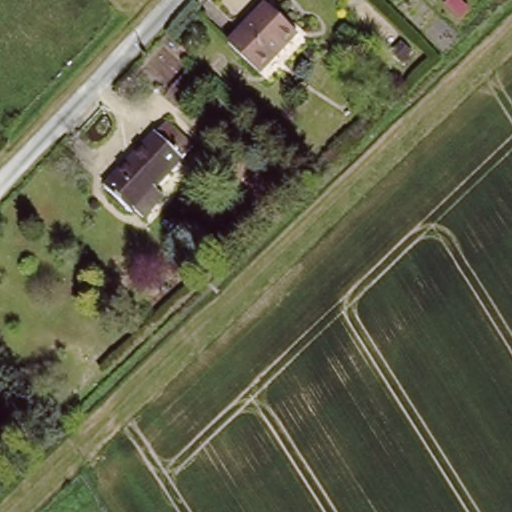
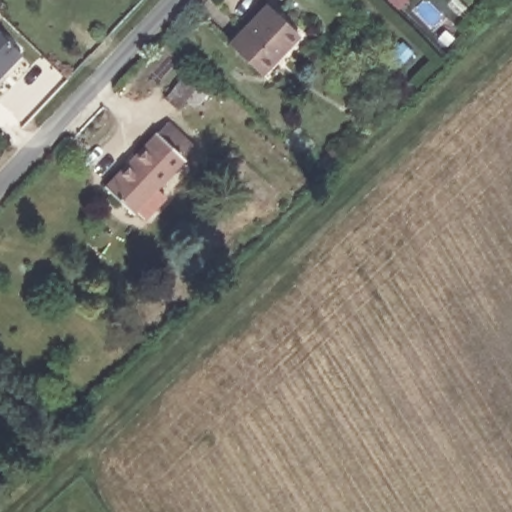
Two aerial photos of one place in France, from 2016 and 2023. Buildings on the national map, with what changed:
unchanged [(268,4),(299,33),(257,73),(227,44),(268,4)]
new [(0,84),(0,35),(25,58),(0,84)]
unchanged [(171,96),(193,74),(202,83),(180,105),(171,96)]
unchanged [(171,121),(201,152),(133,219),(103,188),(171,121)]

